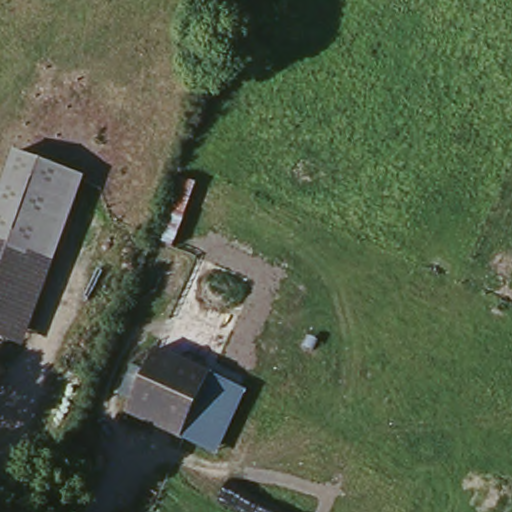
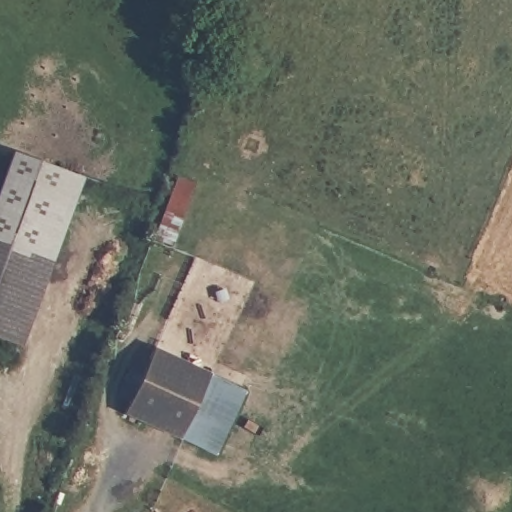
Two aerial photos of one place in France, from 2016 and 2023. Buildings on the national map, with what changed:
unchanged [(88,185),(17,344),(0,337),(0,175),(6,157),(88,185)]
unchanged [(163,234),(181,173),(197,176),(175,238),(163,234)]
unchanged [(181,430),(126,404),(155,341),(209,366),(181,430)]
unchanged [(241,381),(212,444),(181,430),(209,366),(241,381)]

